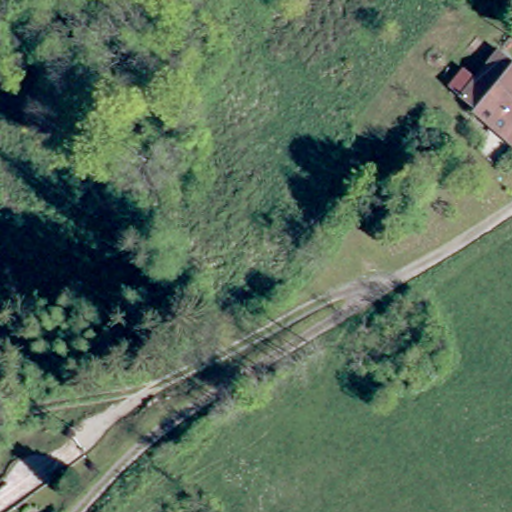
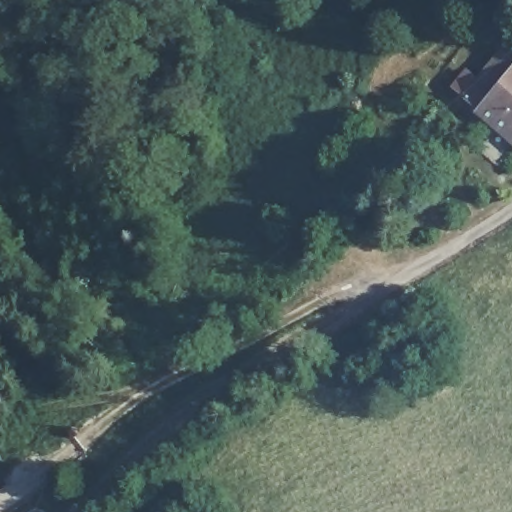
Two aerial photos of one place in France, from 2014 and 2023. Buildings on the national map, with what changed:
unchanged [(479,102),(465,89),(503,48),(512,56),(512,69),(479,102)]
unchanged [(512,69),(512,136),(480,107),(479,102),(512,69)]

